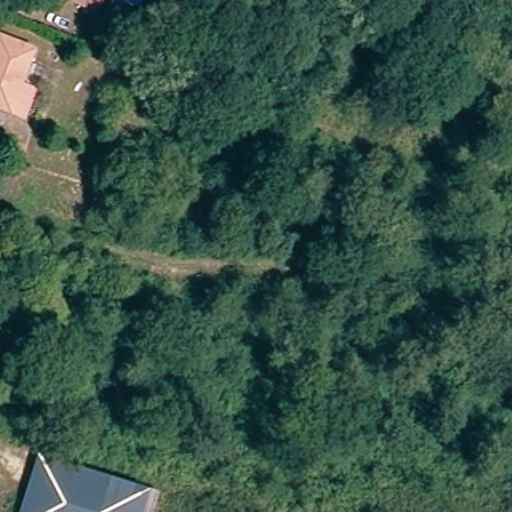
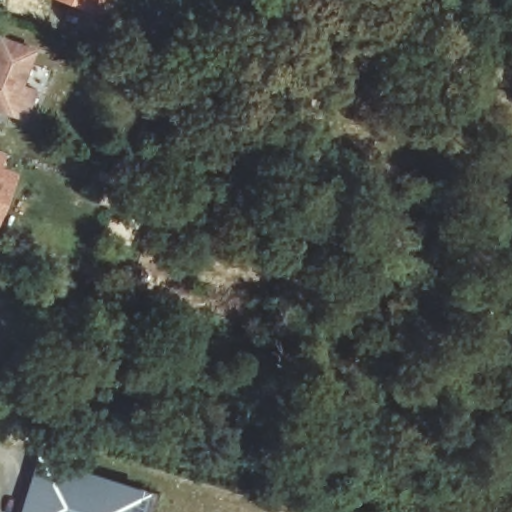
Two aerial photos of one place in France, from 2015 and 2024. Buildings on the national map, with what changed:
unchanged [(27,51),(16,85),(26,89),(17,116),(0,111),(0,42),(27,51)]
new [(9,153),(5,165),(20,171),(0,219),(0,149),(9,153)]
unchanged [(15,512),(32,458),(46,463),(30,512),(15,512)]
unchanged [(122,512),(30,512),(46,463),(129,490),(122,512)]
unchanged [(143,512),(122,512),(129,490),(148,496),(143,512)]

